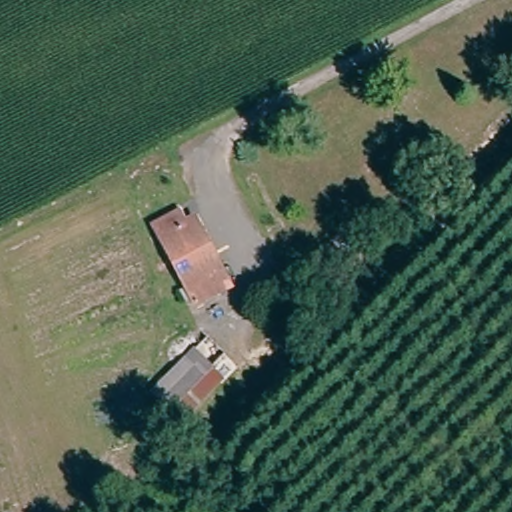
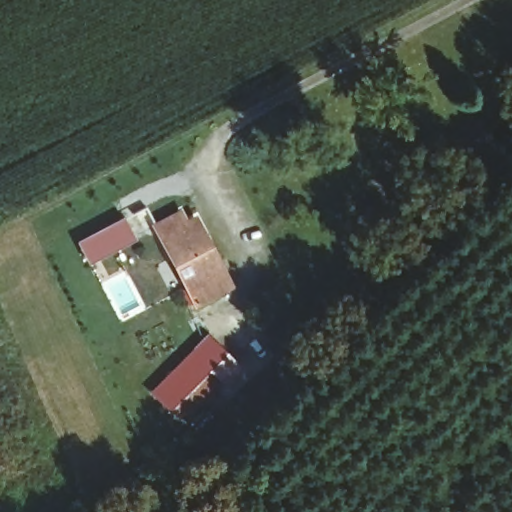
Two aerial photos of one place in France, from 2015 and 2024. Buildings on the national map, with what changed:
unchanged [(180,212),(185,222),(192,219),(230,286),(195,305),(156,225),(180,212)]
new [(124,217),(135,239),(88,263),(76,241),(124,217)]
unchanged [(214,366),(176,411),(155,391),(194,347),(214,366)]

